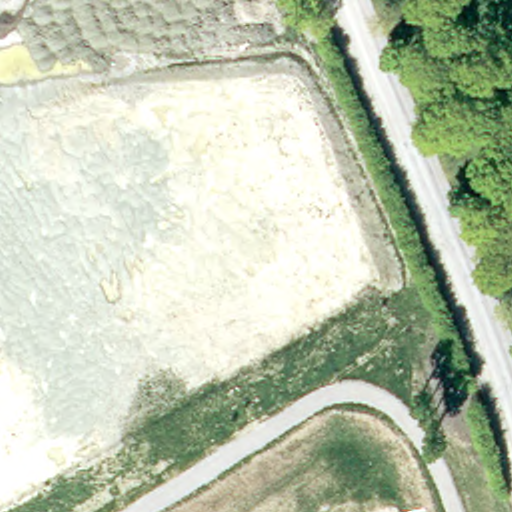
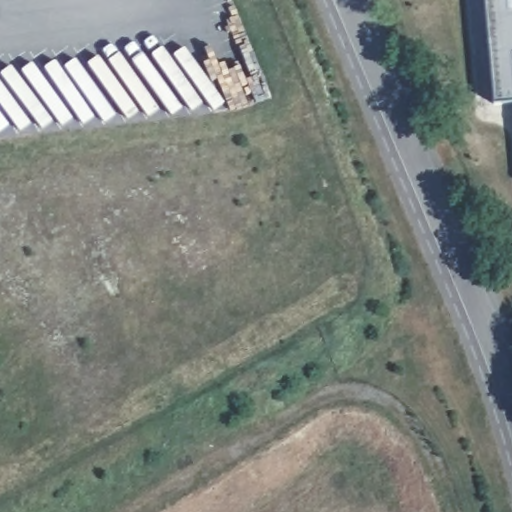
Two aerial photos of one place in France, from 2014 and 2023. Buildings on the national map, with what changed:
new [(485,0),(512,0),(512,99),(493,101),(485,0)]

